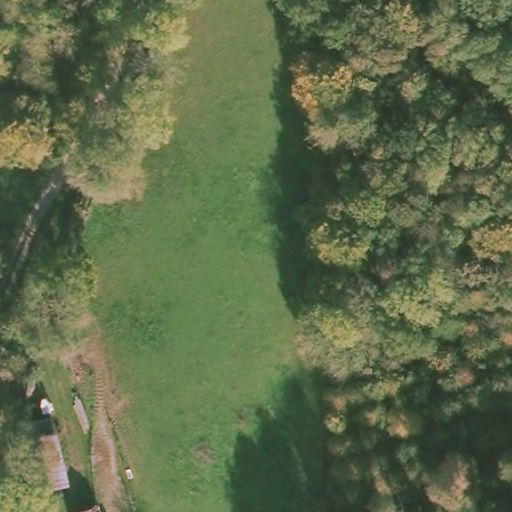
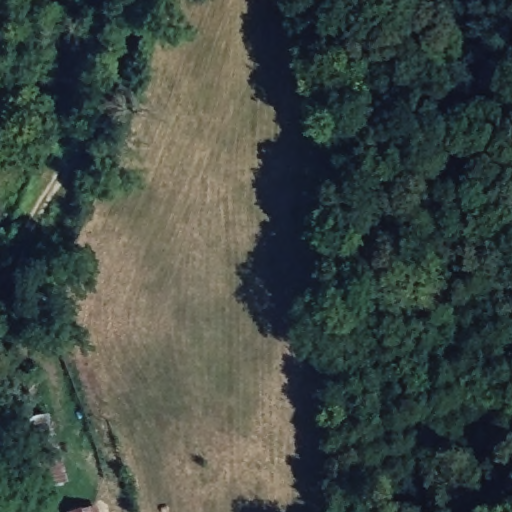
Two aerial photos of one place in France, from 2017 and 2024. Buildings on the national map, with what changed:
unchanged [(70,487),(42,493),(27,423),(53,416),(70,487)]
unchanged [(100,509),(100,512),(78,512),(100,509)]

